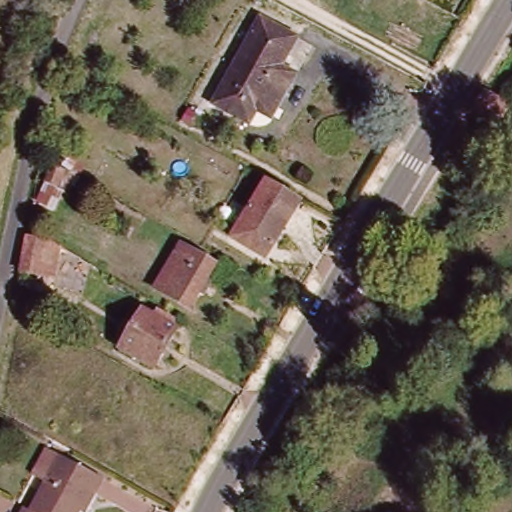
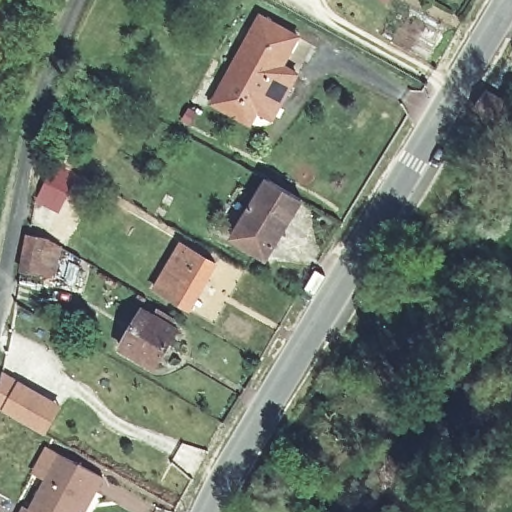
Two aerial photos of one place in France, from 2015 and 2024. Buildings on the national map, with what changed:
demolished [(104,0),(114,0),(110,7),(102,4),(104,0)]
unchanged [(229,114),(208,102),(256,17),(290,37),(275,65),(292,77),(283,92),(267,119),(259,115),(250,110),(243,122),(229,114)]
unchanged [(482,107),(490,94),(512,107),(512,110),(505,121),(482,107)]
unchanged [(30,202),(44,185),(40,177),(61,148),(81,163),(51,215),(30,202)]
unchanged [(233,237),(259,195),(268,180),(303,199),(293,215),(267,258),(233,237)]
unchanged [(53,278),(24,273),(29,239),(48,239),(58,244),(53,278)]
unchanged [(213,268),(189,311),(172,300),(156,291),(180,249),(196,258),(213,268)]
demolished [(84,257),(102,267),(98,273),(80,263),(84,257)]
unchanged [(153,370),(116,348),(119,345),(141,307),(147,311),(145,315),(151,318),(154,313),(171,324),(169,327),(176,332),(154,368),(153,370)]
new [(45,435),(32,428),(4,413),(0,411),(0,379),(2,376),(18,385),(47,400),(60,406),(45,435)]
unchanged [(37,477),(50,452),(61,458),(101,483),(93,499),(85,512),(30,512),(47,483),(37,477)]

